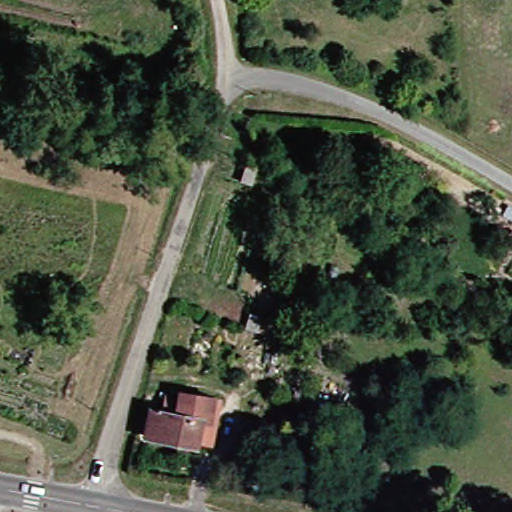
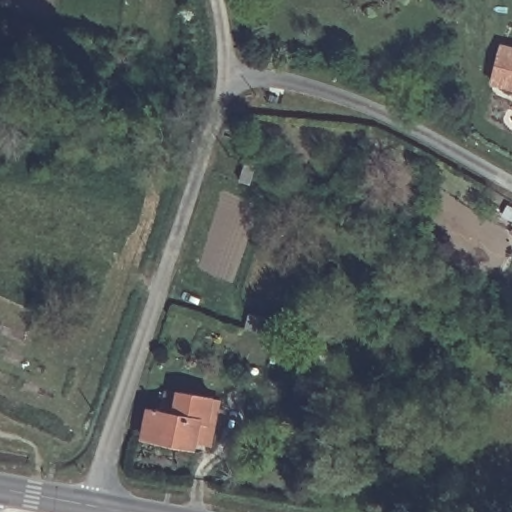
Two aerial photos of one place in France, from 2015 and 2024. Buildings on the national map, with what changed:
new [(502,42),(512,45),(512,90),(491,84),(502,42)]
unchanged [(251,168),(261,172),(256,184),(247,180),(251,168)]
unchanged [(215,443),(202,441),(149,430),(154,404),(167,406),(171,389),(182,390),(183,387),(217,393),(223,394),(215,443)]

